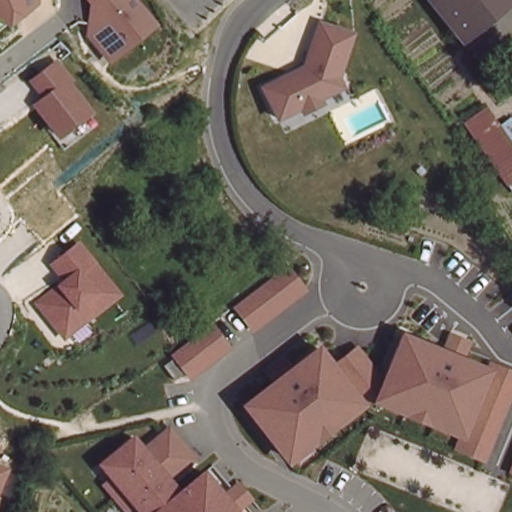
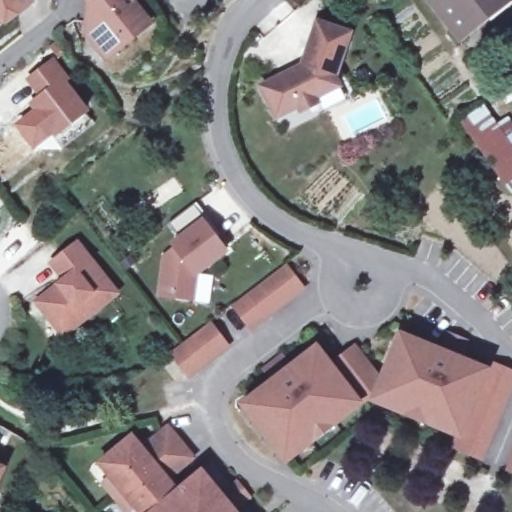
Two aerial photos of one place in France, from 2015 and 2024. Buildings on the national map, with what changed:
unchanged [(5,25),(0,22),(0,0),(36,0),(36,1),(5,25)]
unchanged [(107,61),(85,32),(87,6),(82,0),(135,0),(152,23),(107,61)]
unchanged [(431,0),(507,0),(483,20),(460,37),(456,31),(431,0)]
unchanged [(348,29),(334,73),(339,82),(277,115),(261,86),(302,64),(316,18),(348,29)]
unchanged [(70,77),(67,81),(87,110),(51,135),(29,104),(35,92),(25,76),(57,59),(70,77)]
unchanged [(512,154),(512,181),(500,190),(457,125),(481,109),(512,154)]
new [(218,235),(214,237),(225,252),(197,274),(194,297),(161,293),(165,257),(176,249),(174,245),(180,239),(169,225),(194,205),(218,235)]
unchanged [(120,295),(64,339),(37,300),(57,285),(64,280),(50,262),(79,242),(120,295)]
unchanged [(303,290),(250,333),(232,307),(287,268),(303,290)]
unchanged [(230,348),(190,381),(170,356),(212,322),(230,348)]
unchanged [(382,372),(400,332),(445,351),(450,335),(471,342),(465,358),(487,368),(492,361),(512,370),(512,394),(484,464),(450,452),(455,439),(370,401),(366,405),(334,361),(355,345),(382,372)]
unchanged [(362,407),(287,464),(241,405),(317,345),(362,407)]
unchanged [(90,460),(130,431),(142,448),(164,422),(197,467),(234,512),(136,512),(90,460)]
unchanged [(512,462),(512,474),(507,473),(512,462)]
unchanged [(2,465),(0,471),(0,464),(2,465)]

